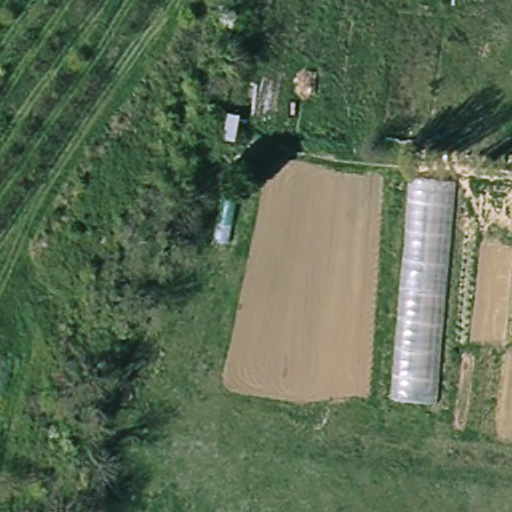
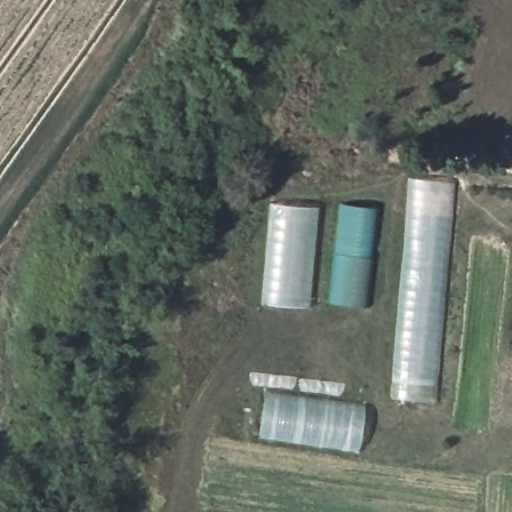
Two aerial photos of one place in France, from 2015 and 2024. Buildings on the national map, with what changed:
unchanged [(454,182),(437,403),(390,401),(410,179),(454,182)]
new [(308,307),(260,303),(267,204),(316,207),(308,307)]
new [(379,208),(372,257),(334,253),(341,204),(379,208)]
new [(365,305),(330,302),(334,253),(372,257),(365,305)]
new [(259,432),(264,393),(365,406),(359,447),(259,432)]

